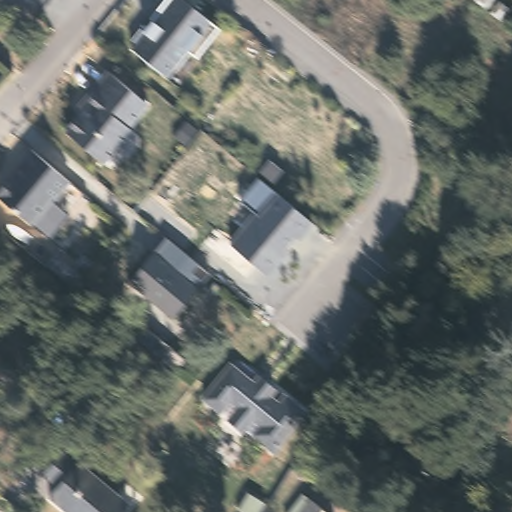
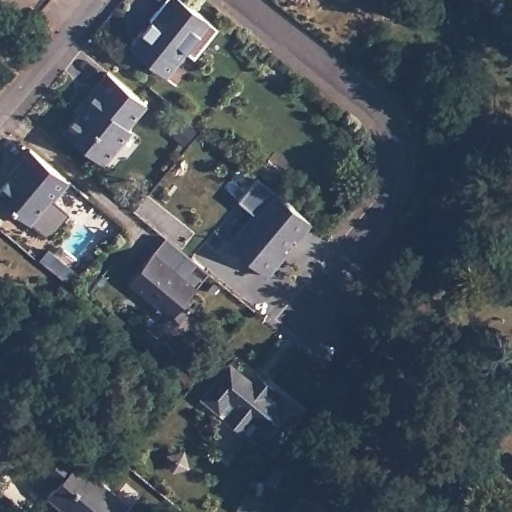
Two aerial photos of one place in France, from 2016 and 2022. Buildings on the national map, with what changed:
unchanged [(162,74),(153,67),(146,61),(139,56),(131,48),(152,21),(150,20),(166,0),(184,0),(218,28),(195,57),(188,51),(177,65),(167,77),(164,75),(162,74)]
unchanged [(474,0),(492,0),(485,9),(474,0)]
unchanged [(130,130),(102,164),(64,132),(79,115),(75,111),(80,105),(102,79),(108,72),(146,105),(141,110),(126,127),(130,130)]
unchanged [(66,179),(68,180),(53,199),(51,196),(29,223),(0,199),(0,188),(10,175),(8,174),(29,149),(66,179)]
unchanged [(254,211),(240,201),(258,177),(313,223),(298,240),(294,236),(284,246),(289,251),(268,275),(230,241),(254,211)]
unchanged [(165,237),(197,263),(191,271),(202,278),(171,316),(129,280),(165,237)]
unchanged [(135,318),(196,370),(183,382),(122,331),(135,318)]
unchanged [(230,362),(252,381),(259,372),(275,388),(270,393),(277,400),(284,392),(307,411),(273,452),(250,435),(257,425),(252,421),(244,431),(226,418),(234,406),(229,402),(220,412),(201,396),(230,362)]
unchanged [(45,398),(56,406),(47,417),(37,408),(45,398)]
unchanged [(49,495),(54,488),(57,485),(42,474),(63,450),(128,504),(122,512),(69,512),(49,495)]
unchanged [(303,493),(309,498),(327,512),(289,512),(303,493)]

